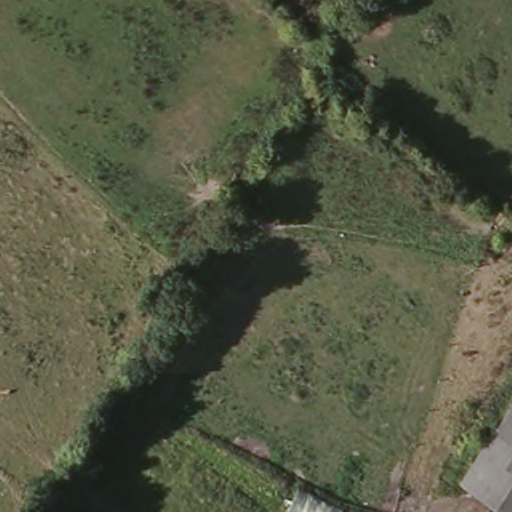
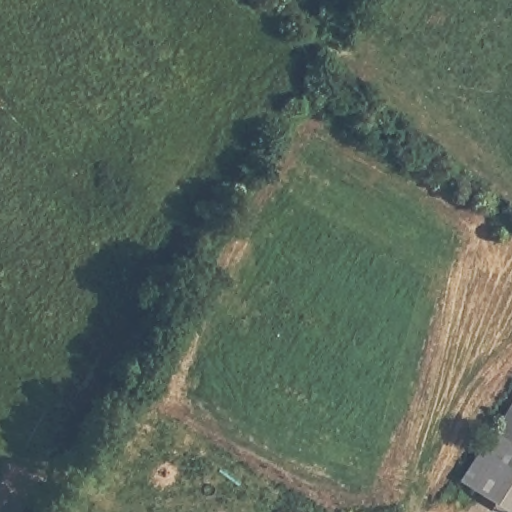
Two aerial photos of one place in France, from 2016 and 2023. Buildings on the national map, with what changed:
unchanged [(512,438),(499,429),(512,409),(512,438)]
unchanged [(499,429),(512,438),(512,512),(510,512),(465,480),(499,429)]

